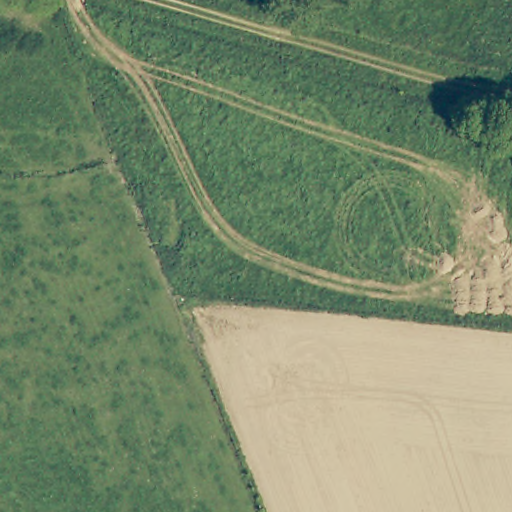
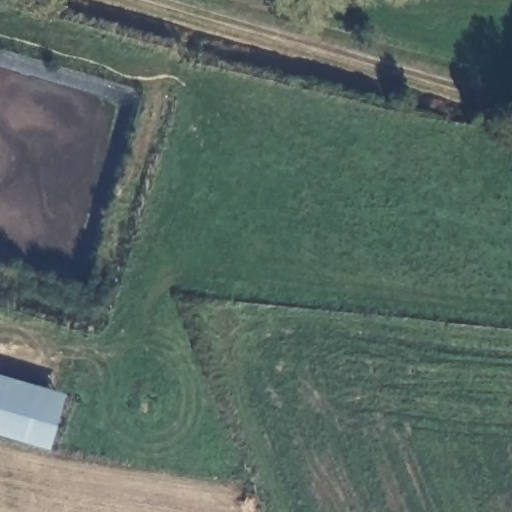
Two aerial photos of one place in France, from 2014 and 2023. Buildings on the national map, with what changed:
new [(47,450),(0,437),(0,376),(64,395),(47,450)]

